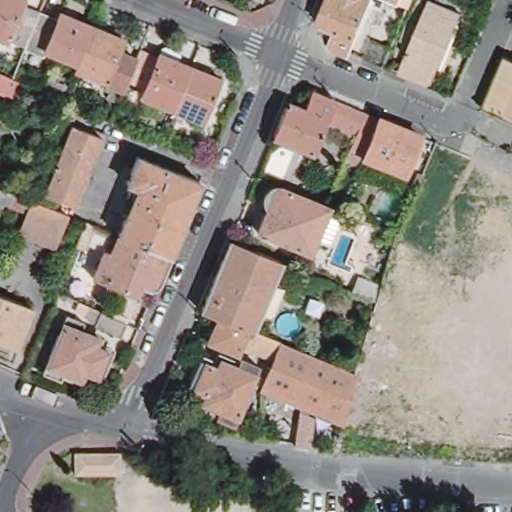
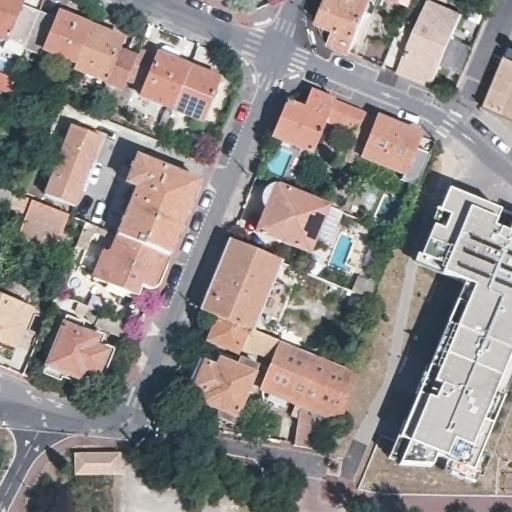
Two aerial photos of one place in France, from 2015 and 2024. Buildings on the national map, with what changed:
unchanged [(0,42),(0,0),(21,0),(22,1),(21,5),(38,13),(25,47),(5,40),(4,44),(0,42)]
unchanged [(356,54),(355,54),(335,44),(340,31),(323,23),(332,0),(378,0),(356,54)]
unchanged [(382,2),(378,0),(383,0),(382,2)]
unchanged [(413,7),(398,0),(416,0),(413,7)]
unchanged [(400,74),(430,2),(462,15),(433,87),(400,74)]
unchanged [(90,27),(75,65),(45,52),(43,57),(23,50),(25,47),(38,13),(56,19),(58,13),(90,27)]
unchanged [(121,40),(117,52),(135,59),(122,91),(73,70),(75,65),(90,27),(121,40)]
unchanged [(140,93),(157,50),(189,62),(171,106),(140,93)]
unchanged [(507,60),(512,62),(512,121),(486,110),(507,60)]
unchanged [(171,106),(189,62),(220,75),(203,119),(171,106)]
unchanged [(21,85),(26,87),(20,100),(0,92),(0,76),(21,85)]
unchanged [(51,80),(67,86),(62,100),(47,93),(51,80)]
unchanged [(365,119),(355,143),(341,137),(344,131),(327,124),(313,156),(311,159),(272,144),(287,106),(305,112),(311,97),(365,119)]
unchanged [(365,119),(420,142),(405,180),(350,157),(355,143),(365,119)]
unchanged [(73,210),(43,196),(71,128),(102,139),(73,210)]
unchanged [(165,254),(114,232),(132,186),(121,182),(132,155),(195,180),(165,254)]
unchanged [(335,207),(315,254),(261,232),(270,210),(267,204),(267,193),(272,187),(278,185),(332,206),(335,207)]
unchanged [(53,249),(18,236),(26,215),(10,208),(10,206),(0,202),(0,188),(15,195),(23,198),(66,216),(53,249)]
new [(512,378),(473,470),(445,460),(436,456),(431,466),(401,464),(387,457),(396,437),(462,282),(441,275),(410,262),(425,225),(432,227),(448,189),(512,216),(512,378)]
demolished [(461,203),(512,202),(512,412),(466,414),(461,203)]
unchanged [(165,254),(152,283),(150,285),(147,286),(122,274),(117,287),(89,276),(101,247),(107,249),(114,232),(165,254)]
unchanged [(262,391),(275,361),(241,347),(238,355),(208,342),(218,318),(200,312),(230,241),(281,261),(253,332),(282,343),(355,373),(341,423),(262,391)]
unchanged [(375,301),(350,290),(356,276),(380,287),(375,301)]
unchanged [(14,349),(0,343),(0,295),(30,308),(14,349)]
unchanged [(78,315),(126,336),(121,347),(99,338),(97,335),(88,331),(88,327),(75,321),(77,315),(78,315)]
unchanged [(99,390),(83,383),(80,391),(62,383),(60,391),(41,383),(66,326),(84,333),(81,340),(98,347),(95,356),(110,363),(99,390)]
unchanged [(235,427),(217,420),(219,413),(201,405),(205,397),(189,390),(200,363),(215,370),(220,362),(237,368),(240,361),(258,368),(235,427)]
unchanged [(300,412),(315,418),(310,449),(295,446),(300,412)]
unchanged [(78,479),(78,456),(123,455),(123,478),(78,479)]

